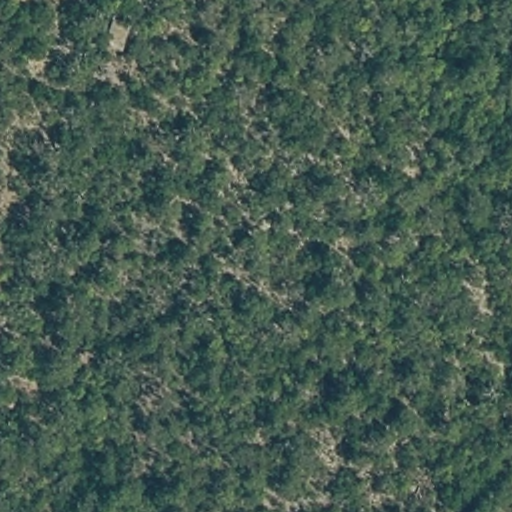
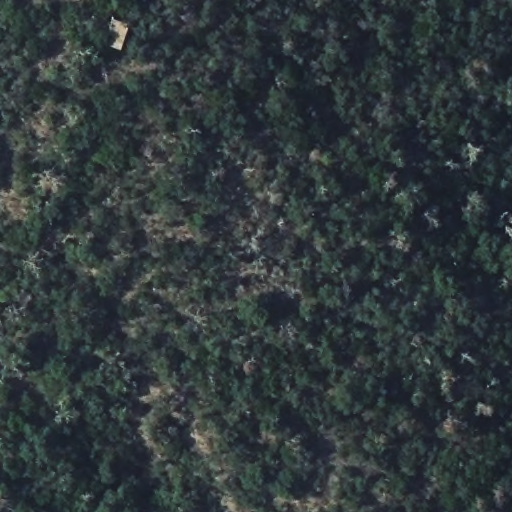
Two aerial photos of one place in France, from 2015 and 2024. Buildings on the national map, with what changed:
unchanged [(121,53),(103,47),(108,21),(126,26),(121,53)]

